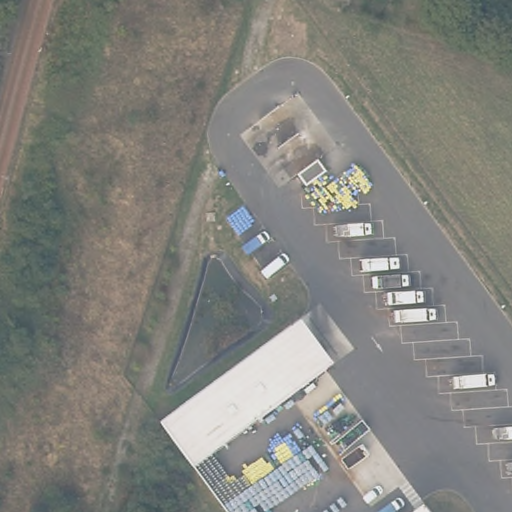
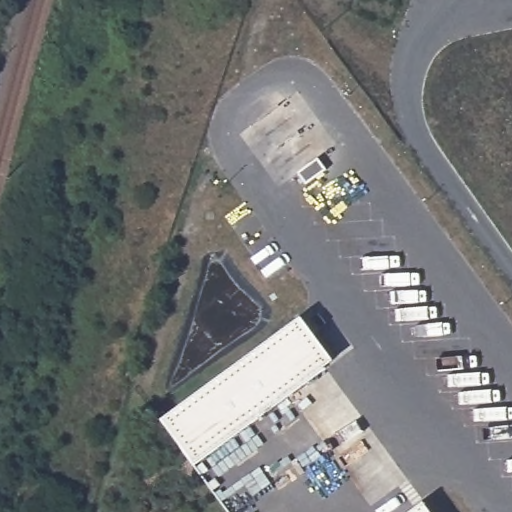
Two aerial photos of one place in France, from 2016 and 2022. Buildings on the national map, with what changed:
unchanged [(336,363),(193,467),(160,421),(301,317),(336,363)]
unchanged [(433,512),(411,512),(425,501),(433,512)]

